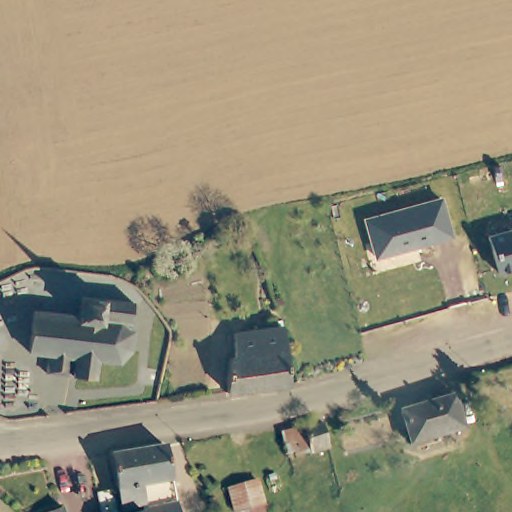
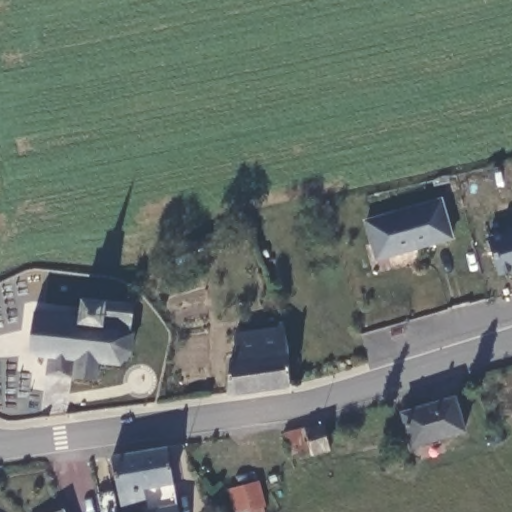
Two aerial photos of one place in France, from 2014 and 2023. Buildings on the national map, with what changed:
unchanged [(446,207),(456,245),(381,265),(371,227),(446,207)]
unchanged [(512,275),(494,280),(485,244),(512,237),(512,275)]
unchanged [(63,315),(64,305),(84,306),(85,298),(128,301),(126,323),(132,330),(130,350),(123,356),(119,362),(98,361),(96,377),(49,374),(50,355),(27,353),(31,313),(63,315)]
unchanged [(230,357),(230,334),(278,331),(281,340),(287,359),(290,378),(224,390),(225,357),(230,357)]
unchanged [(461,427),(410,442),(402,413),(452,398),(461,427)]
unchanged [(329,453),(313,460),(302,428),(318,425),(329,453)]
unchanged [(132,512),(117,512),(107,464),(168,458),(175,512),(138,512),(137,511),(132,512)]
unchanged [(271,478),(279,503),(257,512),(232,512),(225,492),(271,478)]
unchanged [(103,490),(109,512),(91,512),(87,495),(103,490)]
unchanged [(23,512),(20,510),(63,504),(65,512),(23,512)]

